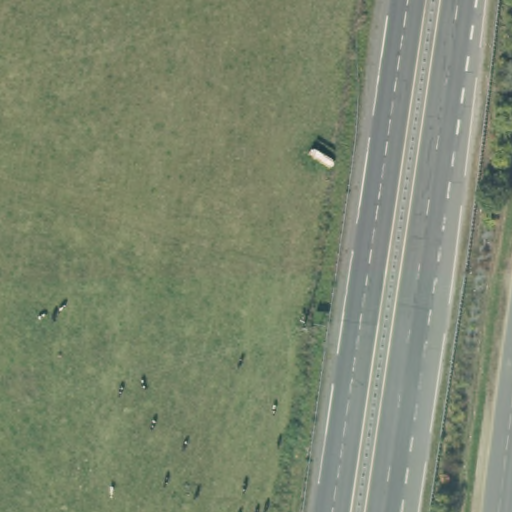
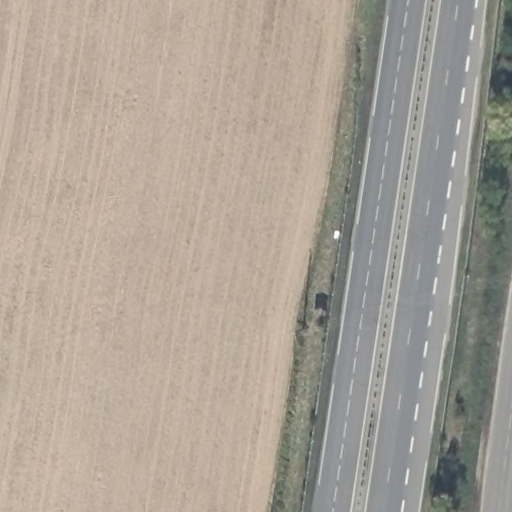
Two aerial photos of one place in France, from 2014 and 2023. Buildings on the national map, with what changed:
[]

